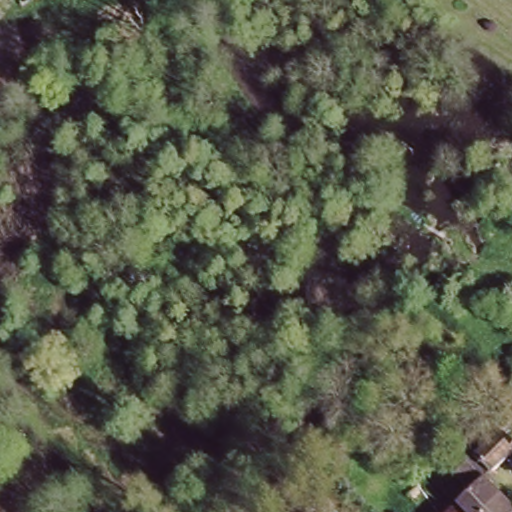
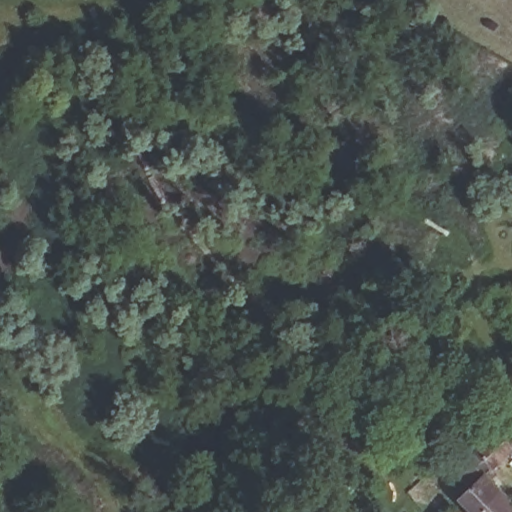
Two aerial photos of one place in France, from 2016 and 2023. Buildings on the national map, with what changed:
unchanged [(472,440),(480,447),(510,420),(512,423),(512,454),(487,476),(486,475),(463,448),(472,440)]
unchanged [(512,512),(459,512),(453,505),(482,478),(512,512)]
unchanged [(448,512),(445,512),(447,510),(448,512)]

